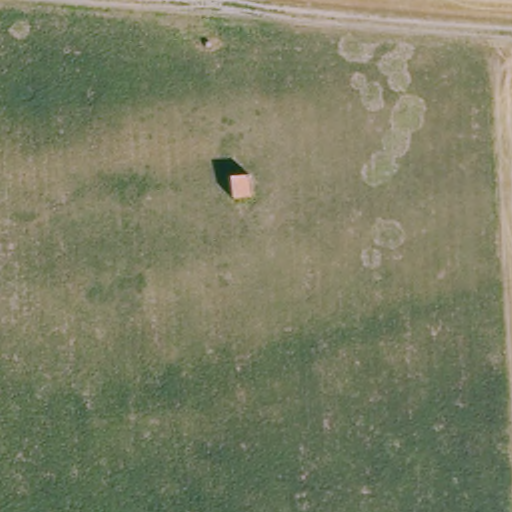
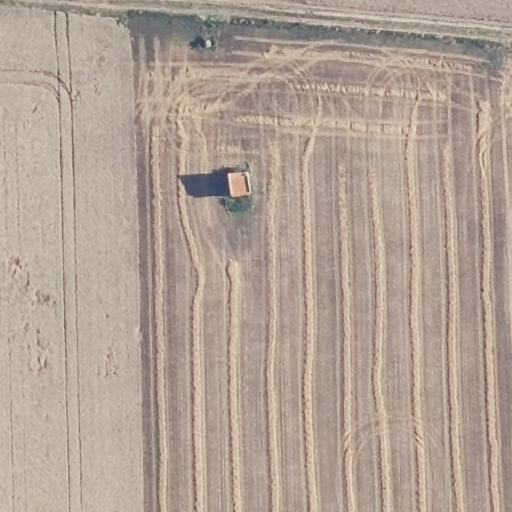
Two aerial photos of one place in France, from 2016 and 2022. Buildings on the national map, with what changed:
unchanged [(247,197),(228,197),(227,177),(246,176),(247,197)]

